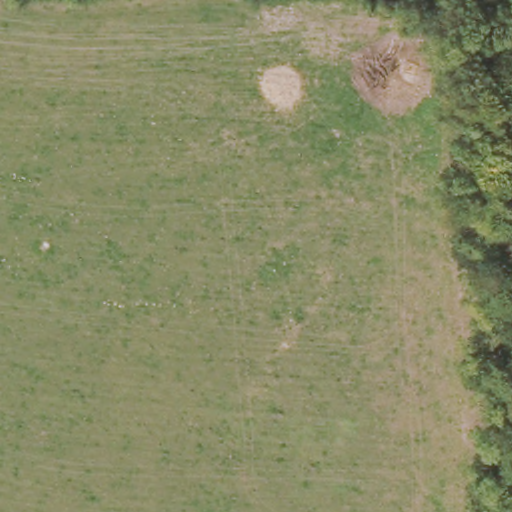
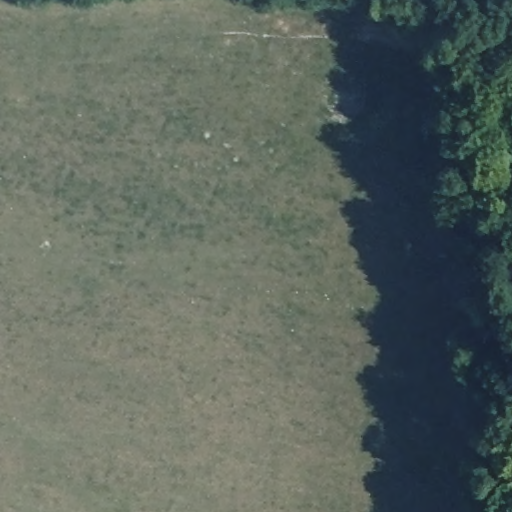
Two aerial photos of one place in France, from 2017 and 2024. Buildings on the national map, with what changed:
[]

